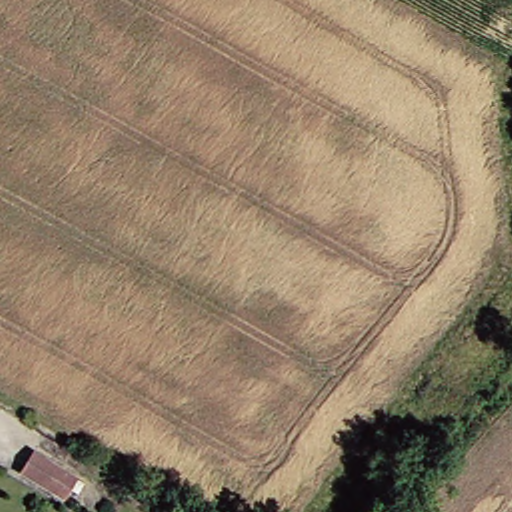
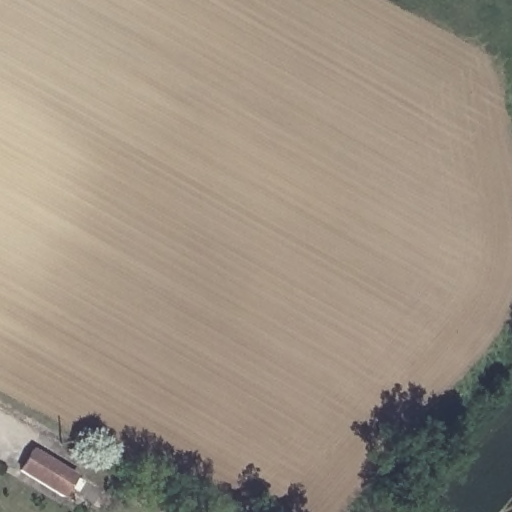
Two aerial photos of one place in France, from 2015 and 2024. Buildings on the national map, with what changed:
unchanged [(66,477),(53,500),(11,473),(22,453),(66,477)]

